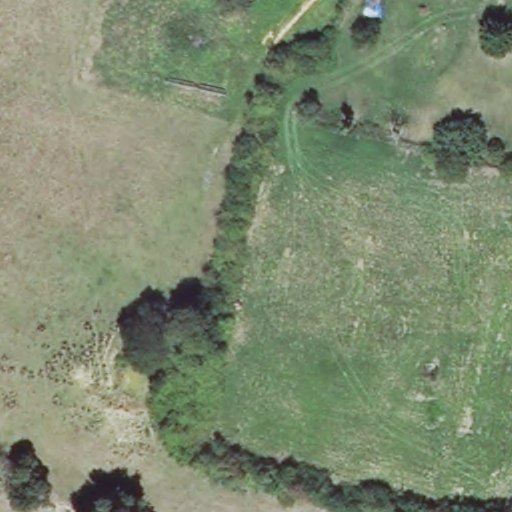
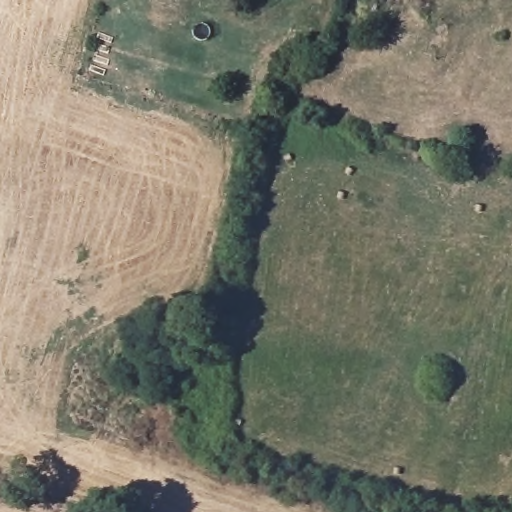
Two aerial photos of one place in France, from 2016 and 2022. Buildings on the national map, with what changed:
unchanged [(443,27),(434,63),(413,59),(423,21),(443,27)]

